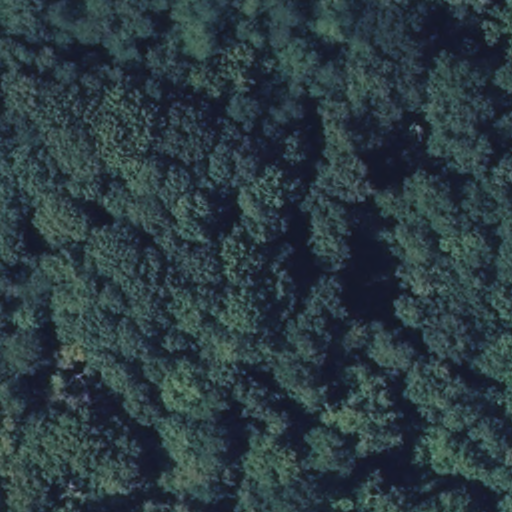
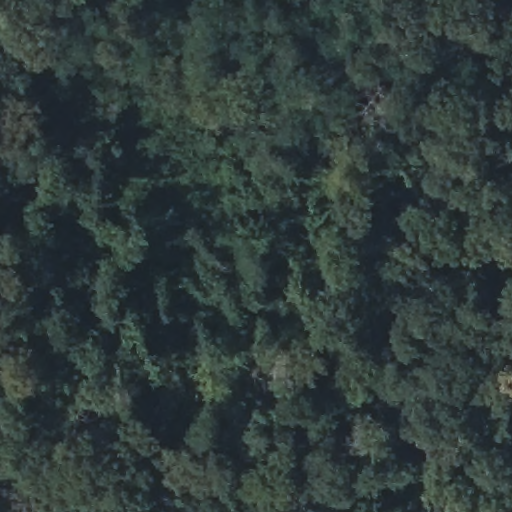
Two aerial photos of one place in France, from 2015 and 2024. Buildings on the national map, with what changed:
[]

